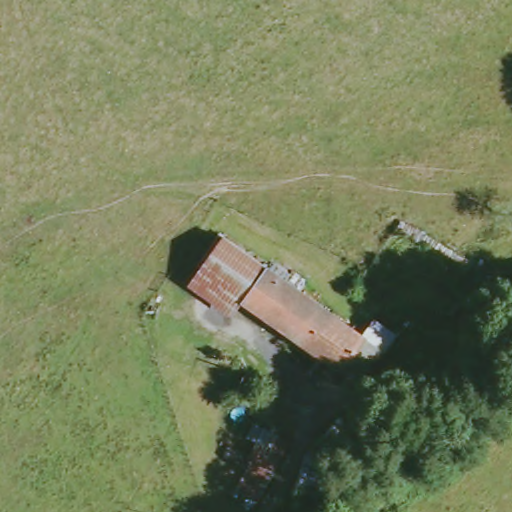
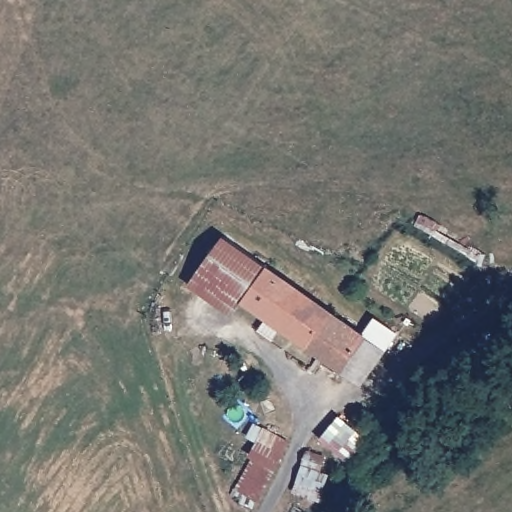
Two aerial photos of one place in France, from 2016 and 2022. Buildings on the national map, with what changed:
unchanged [(248,299),(237,315),(196,284),(230,238),(270,267),(248,299)]
unchanged [(365,383),(345,369),(248,299),(270,267),(369,337),(389,352),(365,383)]
unchanged [(336,450),(335,452),(319,437),(338,417),(355,433),(336,450)]
unchanged [(288,438),(255,509),(233,496),(265,428),(288,438)]

